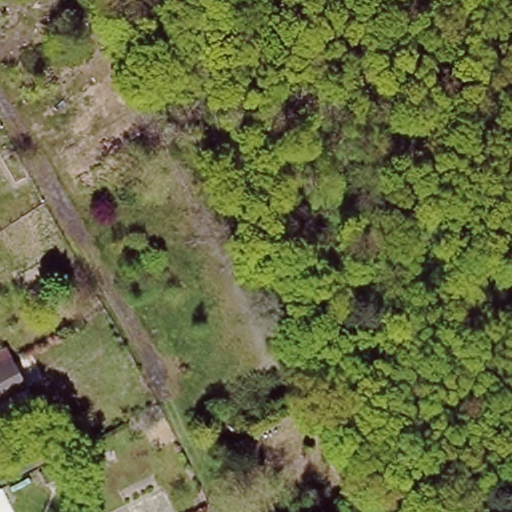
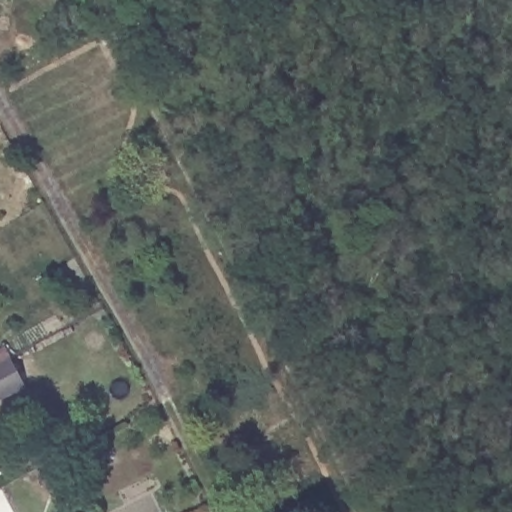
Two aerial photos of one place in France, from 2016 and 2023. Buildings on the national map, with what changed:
unchanged [(24,386),(0,399),(0,362),(10,357),(25,385),(24,386)]

